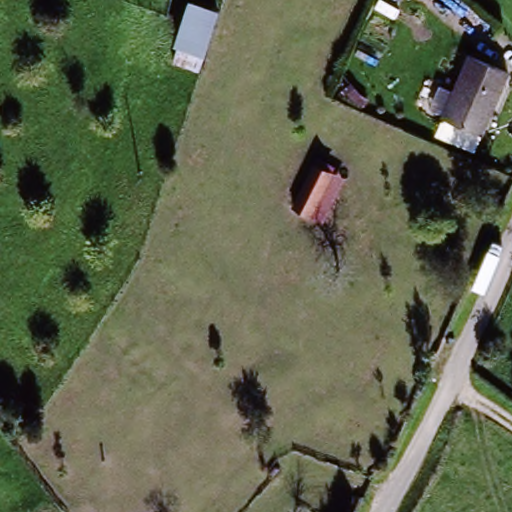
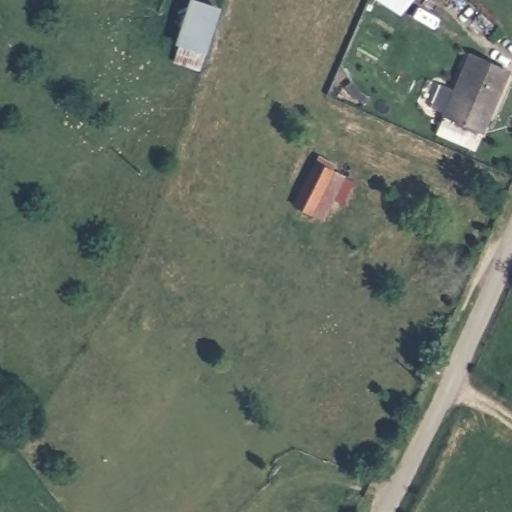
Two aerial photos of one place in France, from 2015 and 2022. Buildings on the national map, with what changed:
unchanged [(209,59),(203,76),(177,66),(178,49),(192,3),(221,10),(209,59)]
unchanged [(443,86),(458,94),(474,60),(511,80),(483,136),(446,119),(448,116),(433,108),(443,86)]
unchanged [(319,165),(336,172),(316,217),(300,210),(319,165)]

